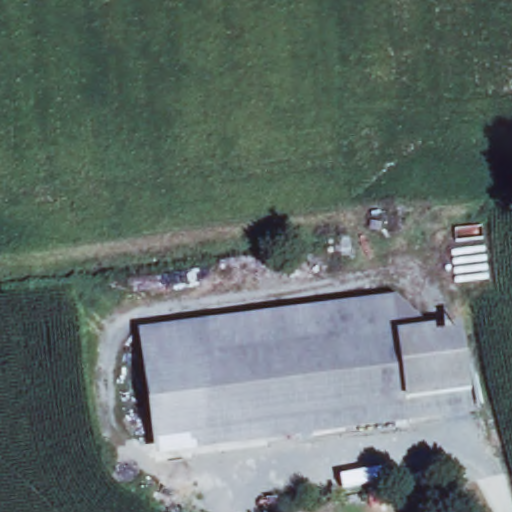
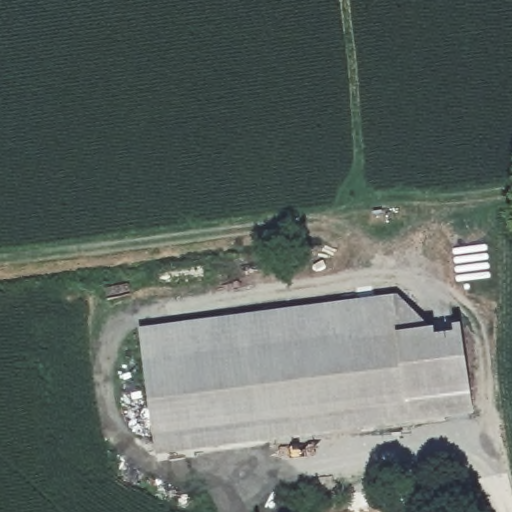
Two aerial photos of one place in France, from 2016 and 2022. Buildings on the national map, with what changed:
unchanged [(432,338),(461,336),(471,417),(154,455),(142,379),(134,327),(391,295),(432,338)]

